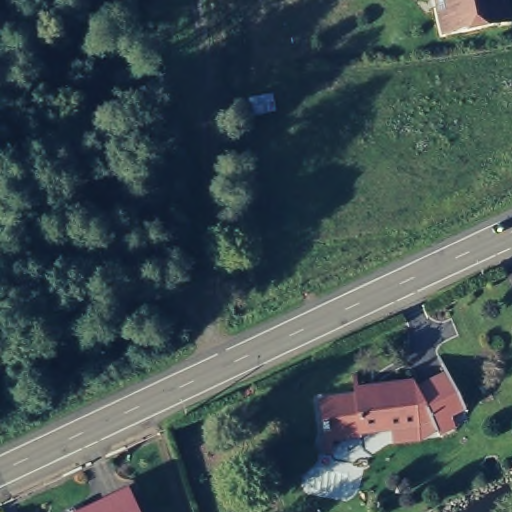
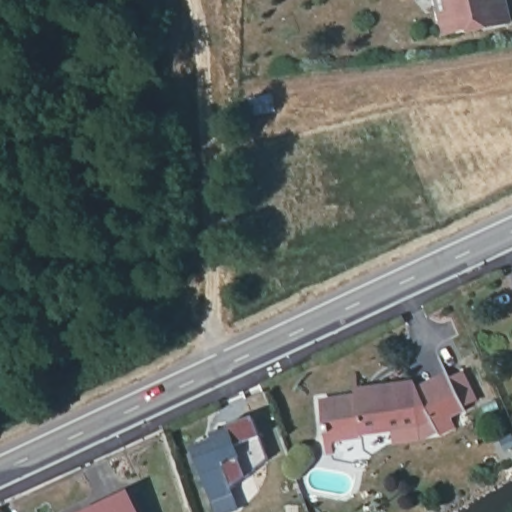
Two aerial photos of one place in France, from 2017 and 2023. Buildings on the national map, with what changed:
unchanged [(510,0),(512,11),(512,25),(485,31),(452,39),(443,0),(510,0)]
unchanged [(250,118),(247,96),(273,91),(277,113),(250,118)]
unchanged [(358,400),(357,393),(416,384),(417,389),(419,391),(446,378),(463,412),(420,431),(391,427),(391,423),(362,427),(362,432),(327,438),(326,433),(328,430),(328,426),(325,423),(324,406),(358,400)]
new [(212,439),(210,434),(225,429),(223,424),(250,414),(266,456),(230,485),(237,509),(232,512),(213,512),(190,448),(212,439)]
unchanged [(130,496),(138,512),(97,512),(130,496)]

